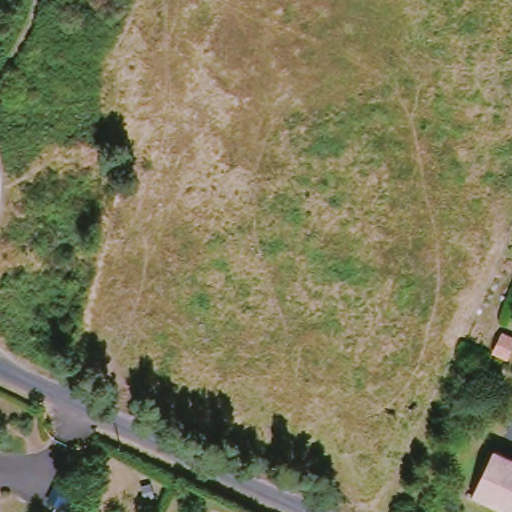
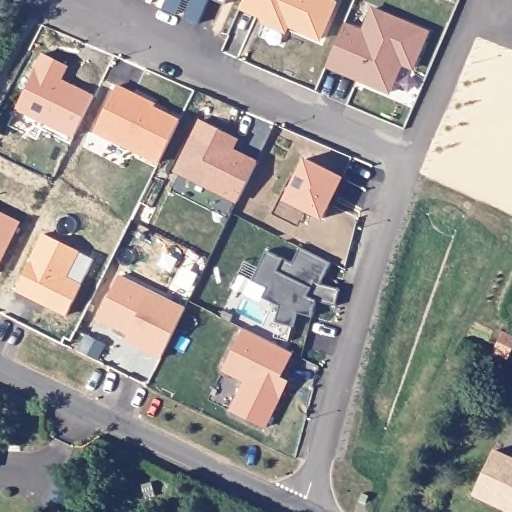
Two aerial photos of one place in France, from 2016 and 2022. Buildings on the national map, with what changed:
new [(336,4),(320,40),(288,26),(285,32),(262,23),(265,16),(258,12),(257,16),(240,9),(244,0),(328,0),(336,4)]
new [(327,67),(345,25),(363,33),(373,10),(428,33),(412,69),(397,62),(392,74),(397,76),(389,94),(365,84),(357,80),(327,67)]
new [(67,67),(60,81),(93,97),(73,137),(16,109),(43,55),(67,67)]
new [(155,106),(153,109),(147,106),(180,122),(159,164),(94,132),(116,87),(148,103),(155,106)]
new [(224,147),(257,164),(237,202),(176,172),(201,121),(230,136),(224,147)]
new [(237,139),(231,151),(224,147),(230,136),(237,139)]
new [(330,206),(322,220),(285,201),(305,160),(343,179),(330,206)]
new [(332,207),(330,206),(333,200),(335,201),(332,207)]
new [(0,263),(0,213),(20,223),(0,263)]
new [(43,234),(79,252),(66,278),(82,286),(67,316),(16,291),(43,234)]
new [(330,263),(317,282),(335,287),(330,304),(311,299),(307,315),(292,311),(288,325),(270,321),(274,304),(261,298),(265,288),(250,281),(265,251),(291,264),(299,247),(330,263)]
new [(148,344),(97,318),(118,277),(185,310),(161,358),(145,351),(125,341),(128,334),(148,344)]
new [(292,353),(280,377),(287,381),(264,428),(230,412),(245,382),(222,371),(243,329),(292,353)]
unchanged [(504,450),(512,454),(512,512),(507,512),(478,499),(504,450)]

